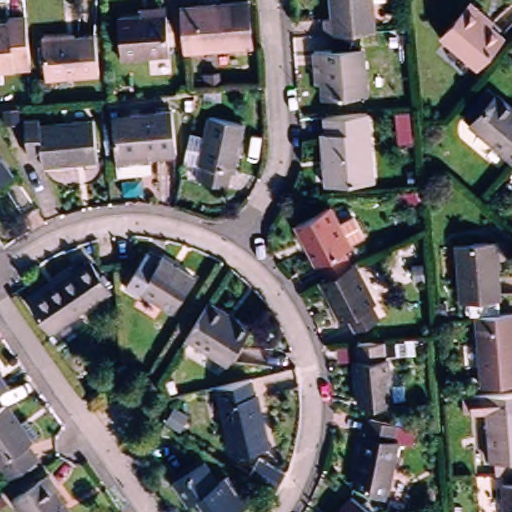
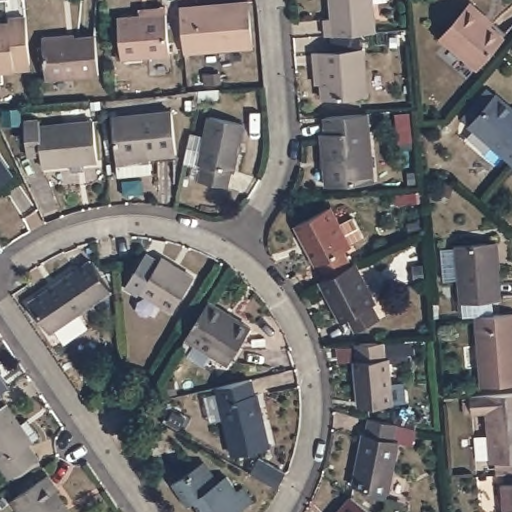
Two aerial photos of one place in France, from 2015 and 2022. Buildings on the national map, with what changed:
unchanged [(324,19),(331,19),(330,0),(372,0),(375,32),(347,35),(325,36),(324,19)]
unchanged [(180,8),(247,1),(252,47),(184,53),(180,8)]
unchanged [(477,69),(441,38),(467,7),(470,2),(492,21),(489,25),(504,37),(477,69)]
unchanged [(121,59),(118,19),(140,16),(140,10),(165,7),(166,14),(170,55),(121,59)]
unchanged [(0,24),(9,24),(9,19),(25,17),(29,64),(29,69),(14,70),(0,72),(0,24)]
unchanged [(95,31),(98,70),(45,74),(42,35),(95,31)]
unchanged [(320,68),(319,52),(367,48),(371,96),(327,100),(327,85),(321,85),(320,68)]
unchanged [(467,124),(475,114),(492,95),(500,102),(501,100),(512,110),(512,164),(475,131),(467,124)]
unchanged [(354,110),(372,109),(377,178),(330,181),(325,129),(330,129),(329,113),(354,110)]
unchanged [(120,176),(118,160),(116,160),(112,117),(172,111),(176,155),(147,157),(149,173),(120,176)]
unchanged [(398,147),(397,137),(396,116),(409,115),(410,136),(412,146),(398,147)]
unchanged [(232,173),(229,173),(226,188),(199,182),(202,167),(199,166),(183,163),(189,135),(205,137),(209,117),(242,125),(232,173)]
unchanged [(39,121),(39,127),(94,121),(97,162),(42,167),(40,151),(26,152),(24,122),(39,121)]
unchanged [(0,184),(0,148),(17,171),(0,184)]
unchanged [(394,195),(412,192),(420,192),(421,202),(413,203),(394,205),(394,195)]
unchanged [(322,262),(319,263),(299,222),(332,205),(352,247),(345,250),(352,265),(340,270),(329,276),(322,262)]
unchanged [(495,243),(500,300),(460,302),(455,245),(495,243)]
unchanged [(145,255),(158,263),(160,258),(194,278),(172,313),(140,293),(138,297),(124,290),(145,255)]
unchanged [(90,261),(110,290),(50,332),(30,303),(90,261)]
unchanged [(329,276),(340,270),(352,265),(355,263),(375,303),(372,305),(380,318),(356,331),(349,316),(342,320),(322,280),(329,276)]
unchanged [(250,323),(227,361),(185,334),(202,305),(208,296),(250,323)]
unchanged [(512,313),(512,385),(480,388),(475,316),(512,313)]
unchanged [(382,342),(383,345),(397,343),(399,355),(384,355),(384,358),(387,358),(390,405),(360,407),(355,361),(357,361),(356,344),(370,343),(382,342)]
unchanged [(0,367),(10,382),(0,389),(0,367)]
unchanged [(253,390),(256,390),(268,442),(231,450),(215,383),(250,375),(253,390)]
unchanged [(495,471),(495,464),(490,464),(487,413),(471,415),(470,397),(512,395),(512,470),(495,471)]
unchanged [(28,422),(40,438),(32,443),(27,446),(38,461),(9,481),(0,467),(0,410),(6,406),(21,427),(28,422)]
unchanged [(394,424),(392,440),(397,440),(387,495),(353,488),(362,435),(366,435),(369,419),(394,424)]
unchanged [(250,469),(258,453),(285,468),(276,483),(250,469)]
unchanged [(248,482),(257,496),(251,500),(234,512),(209,512),(199,496),(191,501),(176,480),(202,461),(209,456),(222,477),(231,471),(242,487),(248,482)]
unchanged [(57,490),(55,493),(68,512),(19,512),(11,501),(47,476),(57,490)]
unchanged [(503,512),(501,485),(512,484),(512,512),(503,512)]
unchanged [(367,512),(339,512),(350,498),(362,508),(367,512)]

